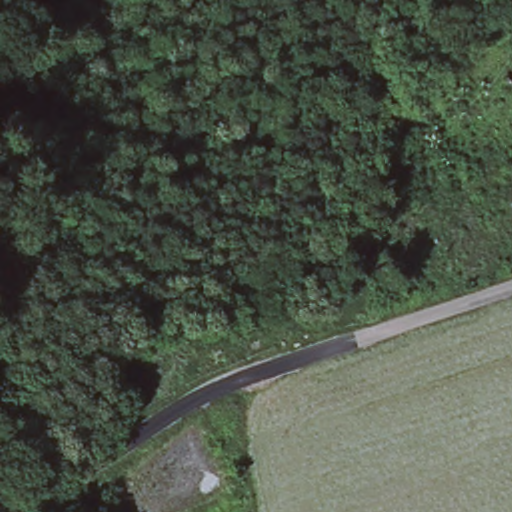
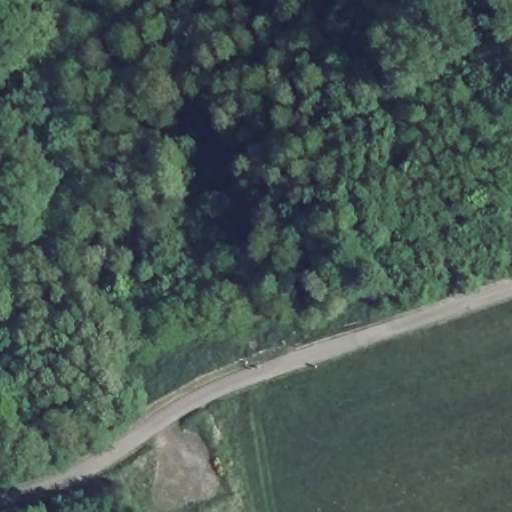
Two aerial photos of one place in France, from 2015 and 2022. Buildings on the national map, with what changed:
[]

